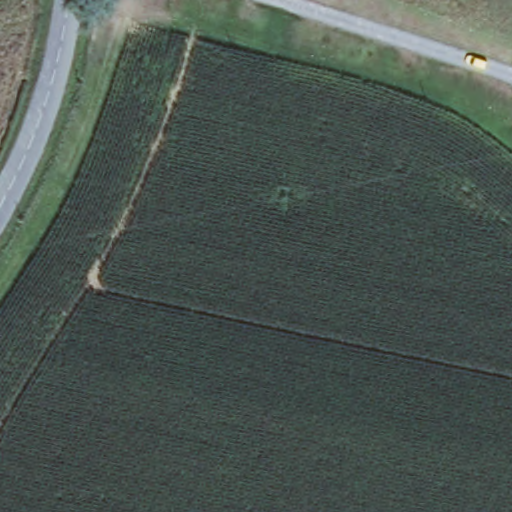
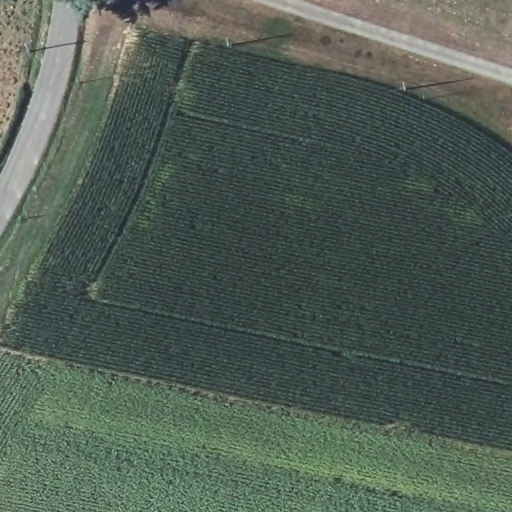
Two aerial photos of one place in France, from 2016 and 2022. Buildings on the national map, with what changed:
[]

